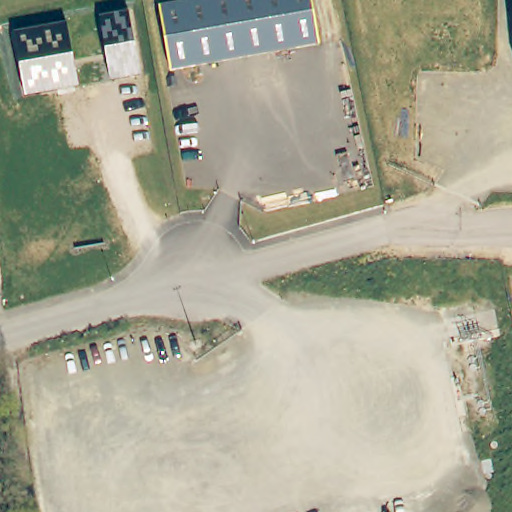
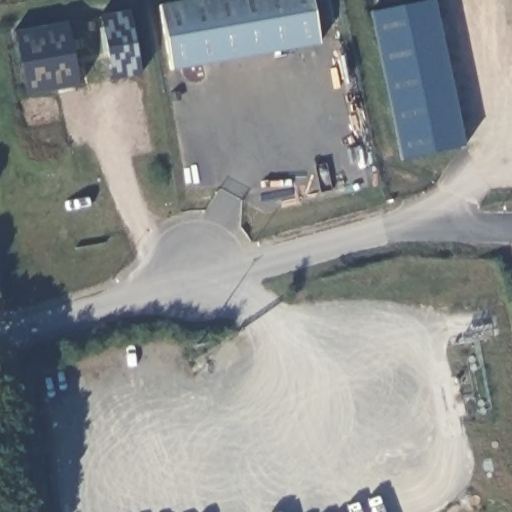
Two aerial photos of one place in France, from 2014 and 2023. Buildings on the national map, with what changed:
unchanged [(316,0),(323,48),(174,73),(163,8),(212,0),(316,0)]
new [(403,159),(371,12),(430,0),(435,0),(465,146),(403,159)]
unchanged [(100,14),(128,9),(139,75),(110,79),(100,14)]
unchanged [(23,95),(12,30),(67,23),(79,87),(23,95)]

